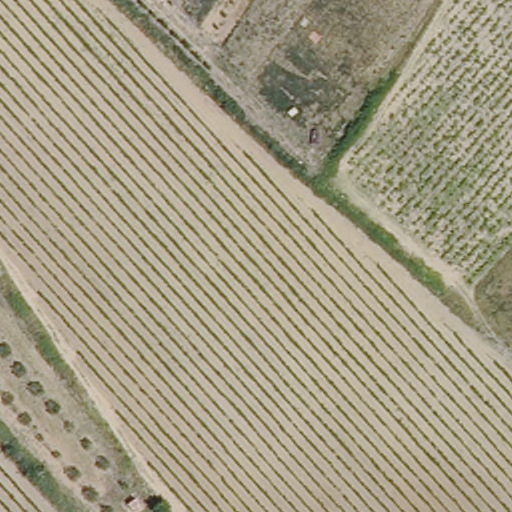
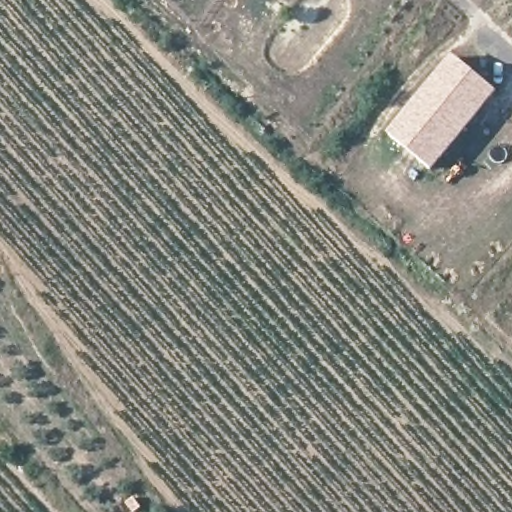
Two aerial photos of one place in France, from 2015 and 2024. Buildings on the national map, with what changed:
new [(455,59),(500,93),(438,177),(393,143),(455,59)]

